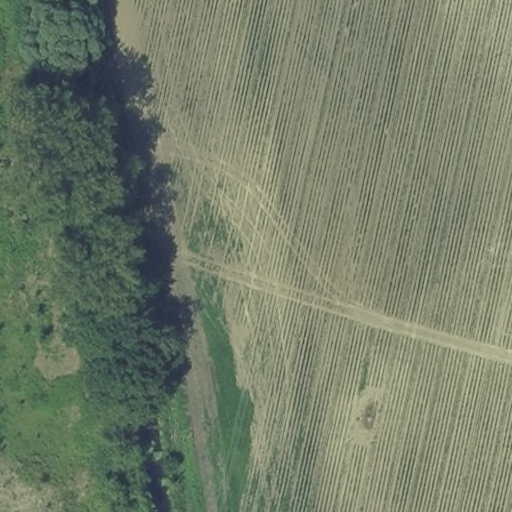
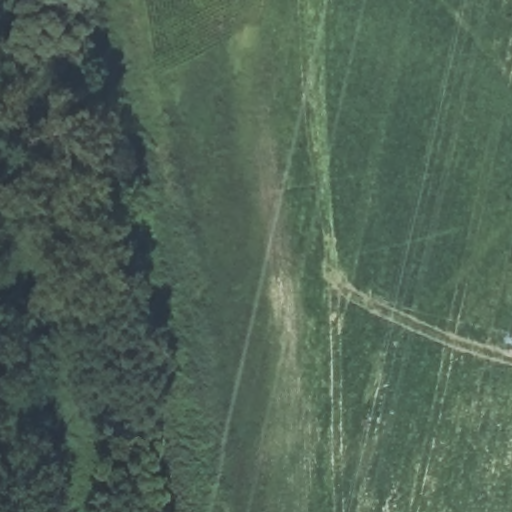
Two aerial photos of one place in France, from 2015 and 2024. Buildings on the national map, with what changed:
unchanged [(16,0),(39,0),(43,15),(22,17),(16,0)]

